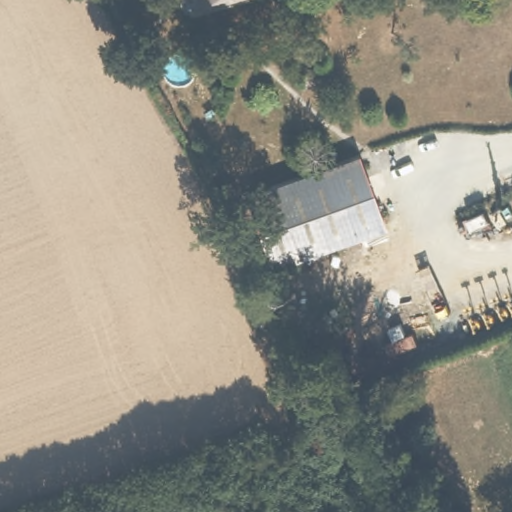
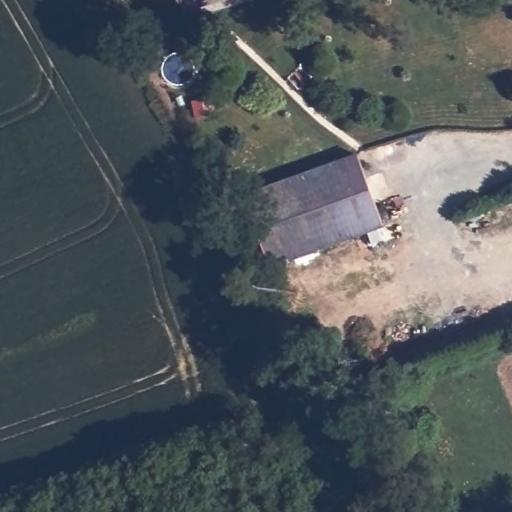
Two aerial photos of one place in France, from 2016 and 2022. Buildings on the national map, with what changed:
unchanged [(203,5),(202,0),(224,0),(203,5)]
unchanged [(275,267),(249,197),(363,155),(388,226),(275,267)]

